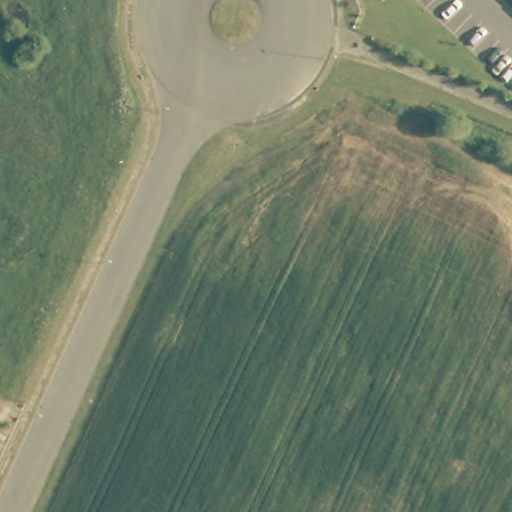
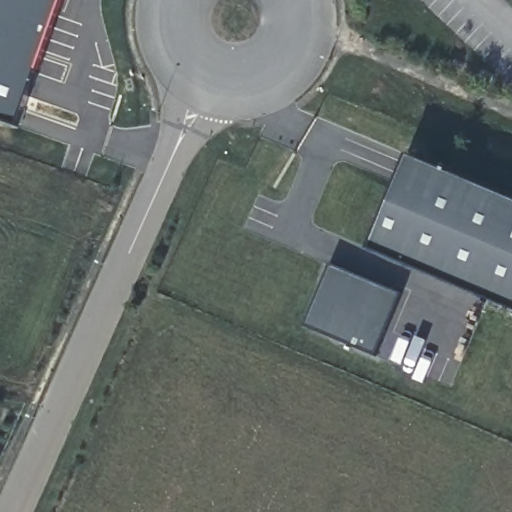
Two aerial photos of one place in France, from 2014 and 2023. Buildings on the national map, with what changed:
new [(15,130),(0,125),(0,0),(61,0),(15,130)]
new [(512,199),(512,308),(370,250),(411,155),(512,199)]
new [(400,295),(377,354),(305,325),(331,264),(400,295)]

